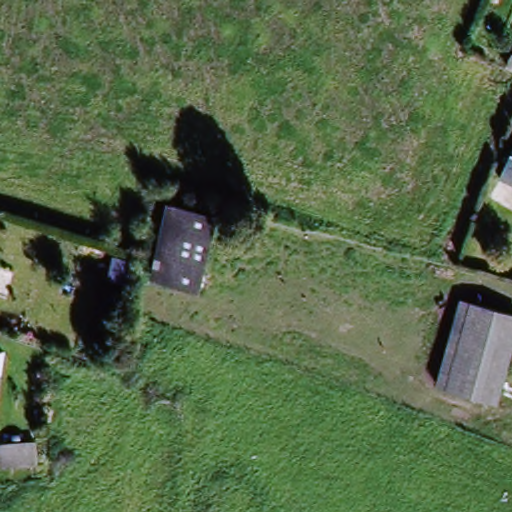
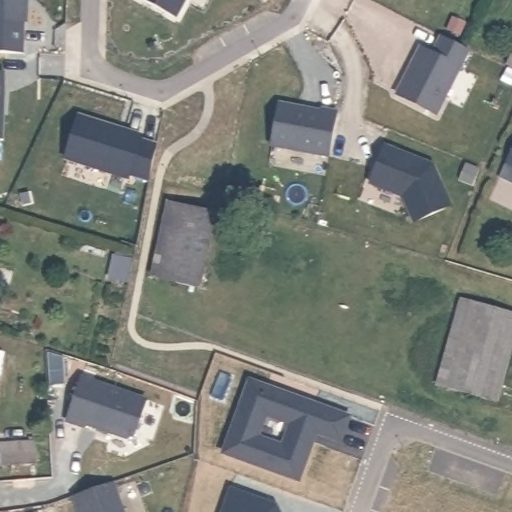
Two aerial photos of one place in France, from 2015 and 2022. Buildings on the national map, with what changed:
new [(26,0),(25,22),(0,21),(0,0),(26,0)]
new [(141,0),(183,0),(173,18),(141,0)]
new [(421,52),(433,59),(442,41),(467,55),(435,117),(397,97),(421,52)]
unchanged [(512,49),(512,65),(505,60),(512,49)]
new [(2,74),(0,117),(0,73),(2,74)]
new [(279,102),(322,111),(322,108),(338,111),(329,155),(271,143),(279,102)]
new [(76,116),(139,137),(138,141),(154,146),(148,181),(127,175),(125,180),(62,159),(76,116)]
unchanged [(512,143),(512,187),(496,180),(512,143)]
new [(386,150),(434,170),(451,210),(415,225),(404,200),(372,187),(386,150)]
unchanged [(151,272),(167,204),(213,215),(198,283),(151,272)]
unchanged [(465,302),(512,315),(512,327),(491,401),(441,386),(465,302)]
unchanged [(0,375),(0,352),(13,355),(7,376),(0,375)]
new [(80,379),(141,401),(129,435),(123,437),(81,423),(80,426),(65,421),(80,379)]
new [(350,416),(341,444),(316,436),(313,441),(316,443),(300,482),(222,455),(251,380),(350,416)]
unchanged [(39,466),(6,468),(7,443),(39,442),(39,466)]
new [(115,483),(125,512),(79,512),(74,497),(115,483)]

